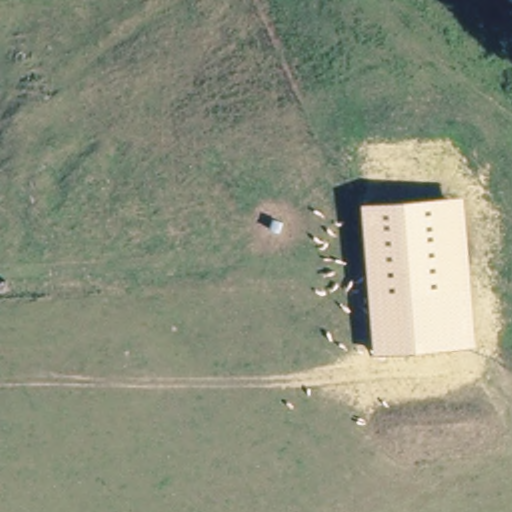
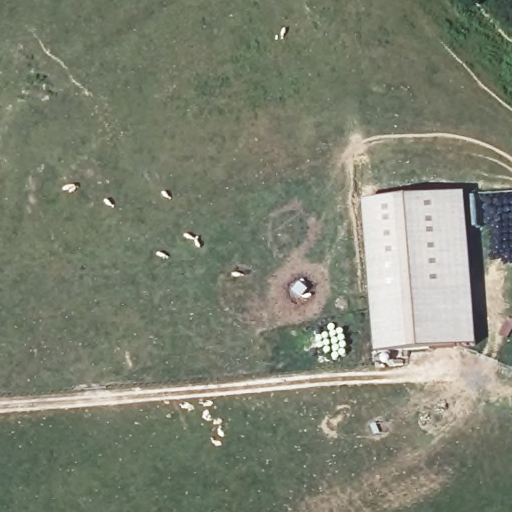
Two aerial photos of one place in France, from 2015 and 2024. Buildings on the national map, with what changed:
unchanged [(465,195),(477,344),(375,354),(363,203),(465,195)]

